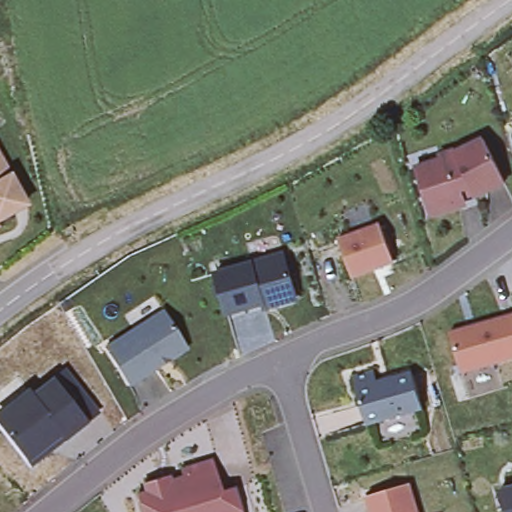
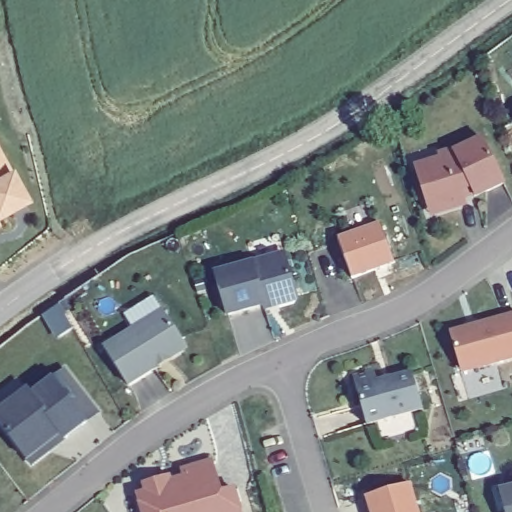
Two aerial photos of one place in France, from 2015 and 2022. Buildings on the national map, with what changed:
unchanged [(30,196),(0,213),(0,142),(30,196)]
unchanged [(440,166),(439,161),(454,156),(454,158),(483,145),(503,187),(475,202),(470,192),(461,195),(465,205),(455,208),(455,210),(436,217),(430,198),(423,200),(415,174),(440,166)]
unchanged [(1,218),(0,219),(0,215),(1,218)]
unchanged [(379,223),(393,261),(351,277),(337,239),(379,223)]
unchanged [(262,304),(226,314),(215,273),(283,254),(295,295),(291,301),(277,305),(264,309),(262,304)]
unchanged [(127,385),(103,347),(161,310),(182,343),(181,350),(169,358),(155,367),(127,385)]
unchanged [(512,359),(460,374),(449,334),(512,316),(512,359)]
unchanged [(25,459),(0,427),(0,410),(26,390),(30,394),(51,378),(62,369),(95,412),(84,421),(62,438),(28,464),(25,459)]
unchanged [(372,371),(376,383),(411,373),(420,409),(365,425),(351,378),(372,371)]
unchanged [(154,485),(181,477),(180,469),(210,460),(219,492),(232,488),(239,512),(140,512),(135,494),(155,489),(154,485)]
unchanged [(407,484),(416,512),(369,512),(365,497),(407,484)]
unchanged [(512,512),(503,512),(498,491),(512,488),(512,512)]

